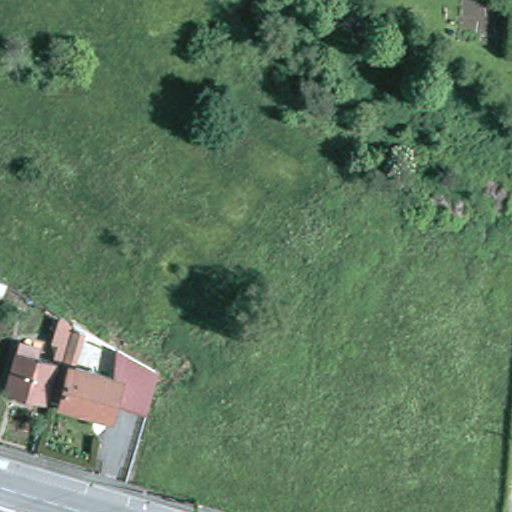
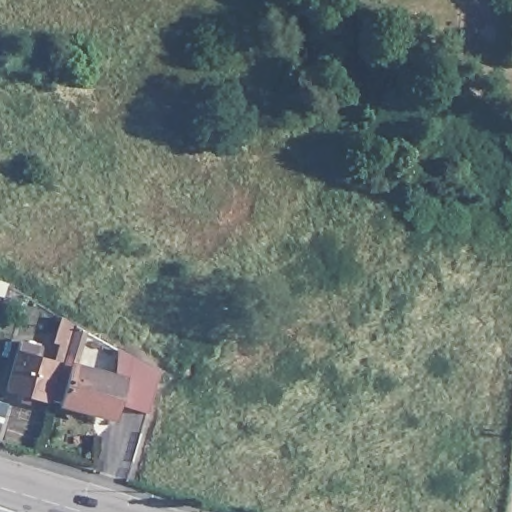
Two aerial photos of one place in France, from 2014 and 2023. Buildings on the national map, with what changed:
unchanged [(72,335),(66,355),(52,351),(58,327),(72,335)]
unchanged [(40,360),(37,368),(55,372),(46,411),(30,407),(28,413),(20,412),(22,406),(5,401),(17,359),(18,355),(22,356),(40,360)]
unchanged [(65,376),(115,382),(116,380),(117,362),(117,361),(157,383),(150,415),(116,410),(115,416),(115,417),(100,416),(100,420),(61,413),(50,412),(60,375),(65,376)]
unchanged [(0,405),(0,398),(2,398),(0,405)]

